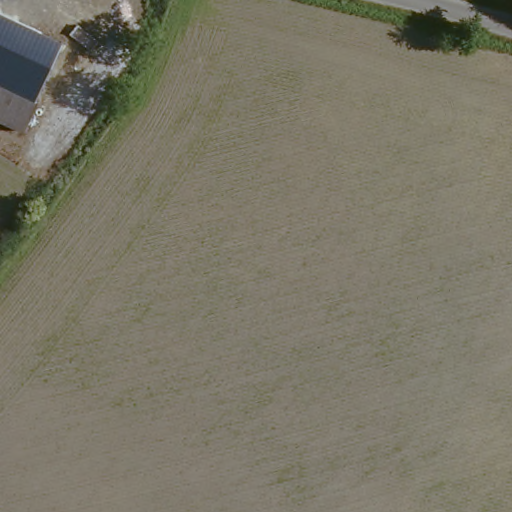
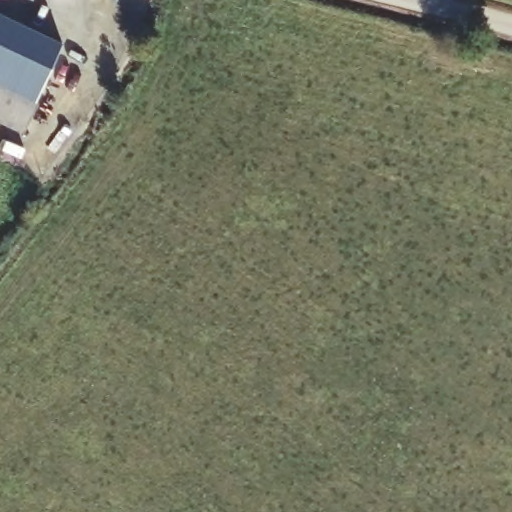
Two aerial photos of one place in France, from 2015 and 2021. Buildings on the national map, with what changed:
unchanged [(61,51),(33,103),(0,85),(0,17),(61,51)]
unchanged [(33,103),(16,133),(0,123),(0,85),(33,103)]

